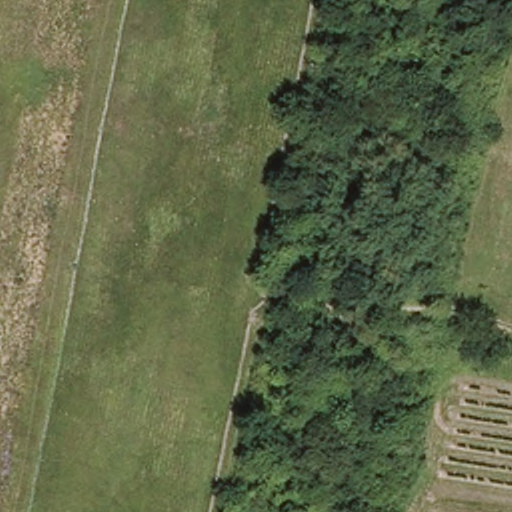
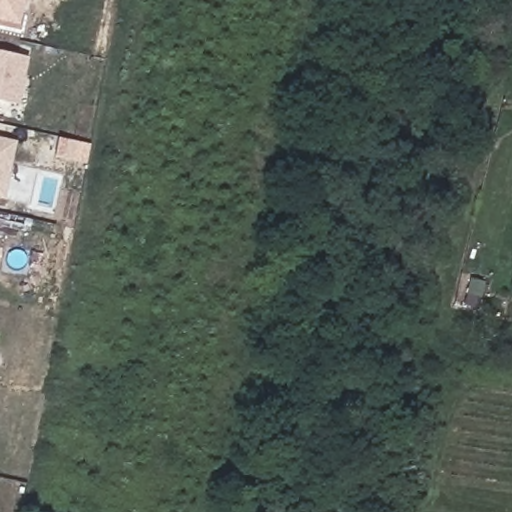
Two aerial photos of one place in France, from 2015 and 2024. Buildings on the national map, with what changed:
new [(0,21),(0,0),(23,0),(17,26),(0,21)]
new [(17,103),(0,100),(0,50),(27,56),(17,103)]
new [(2,200),(0,199),(0,137),(15,141),(2,200)]

